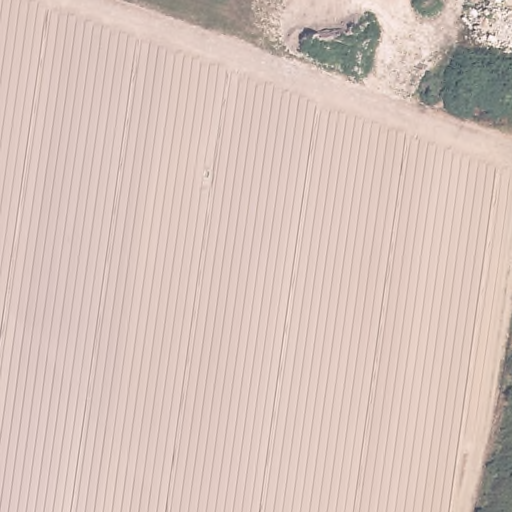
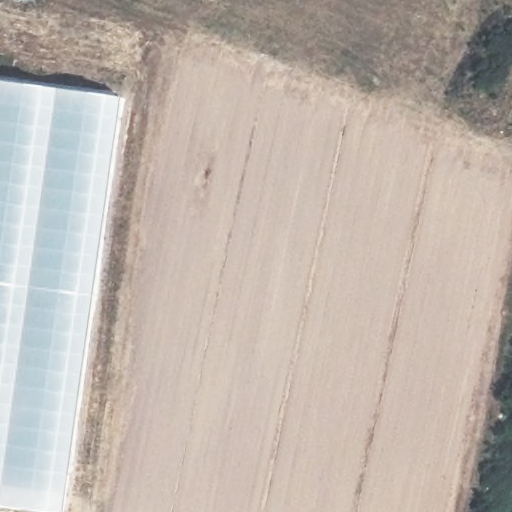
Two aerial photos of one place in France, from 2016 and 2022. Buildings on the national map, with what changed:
new [(51,512),(0,505),(0,81),(120,97),(62,512),(51,512)]

